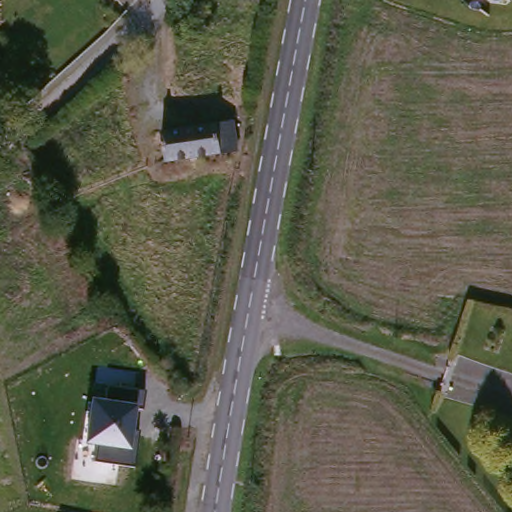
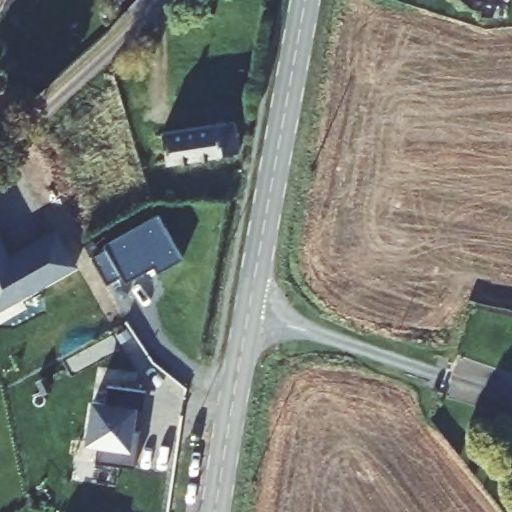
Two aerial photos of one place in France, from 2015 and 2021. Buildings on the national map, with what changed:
unchanged [(228,125),(229,159),(155,165),(156,132),(228,125)]
new [(107,248),(104,244),(159,212),(184,256),(158,271),(154,265),(126,281),(122,275),(107,283),(92,257),(107,248)]
new [(8,249),(13,258),(19,255),(18,252),(59,230),(78,266),(21,295),(19,292),(0,302),(0,234),(1,236),(8,249)]
unchanged [(93,400),(98,366),(138,374),(136,405),(133,432),(136,432),(131,467),(94,462),(96,446),(84,443),(89,400),(93,400)]

